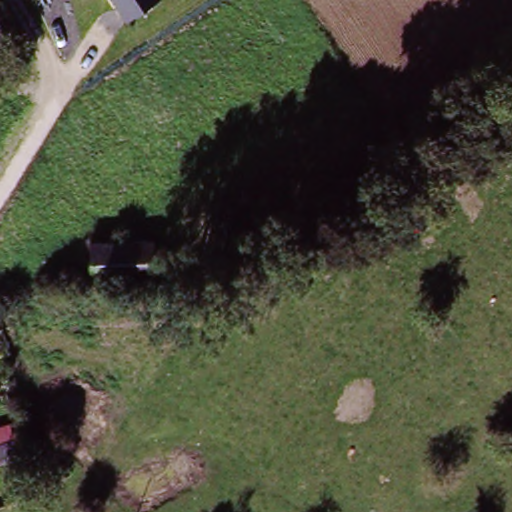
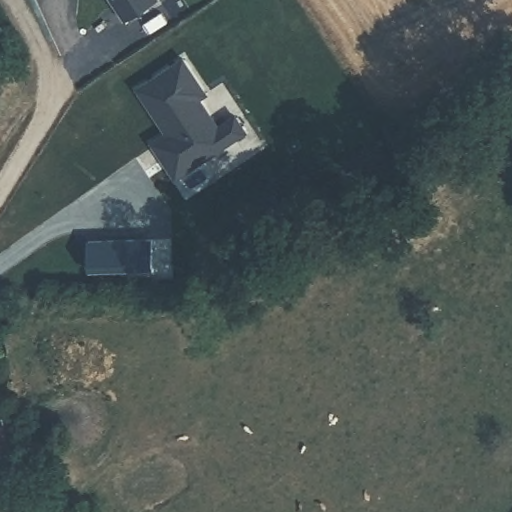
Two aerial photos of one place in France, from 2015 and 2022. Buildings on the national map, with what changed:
unchanged [(160,0),(125,23),(110,0),(160,0)]
unchanged [(8,41),(0,45),(0,28),(8,41)]
new [(176,178),(150,141),(166,131),(137,88),(185,56),(209,94),(203,98),(221,124),(237,113),(248,132),(176,178)]
unchanged [(156,273),(88,276),(87,238),(157,237),(156,273)]

